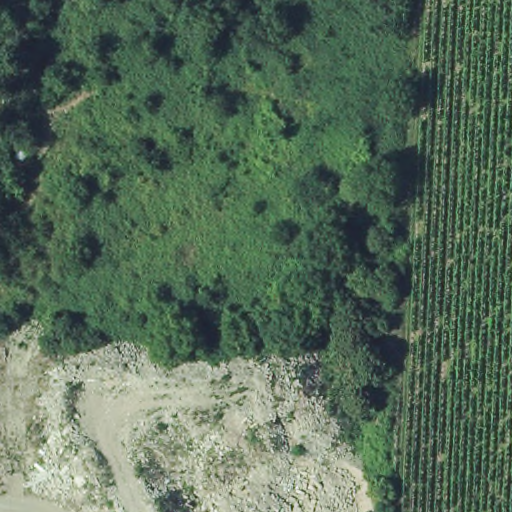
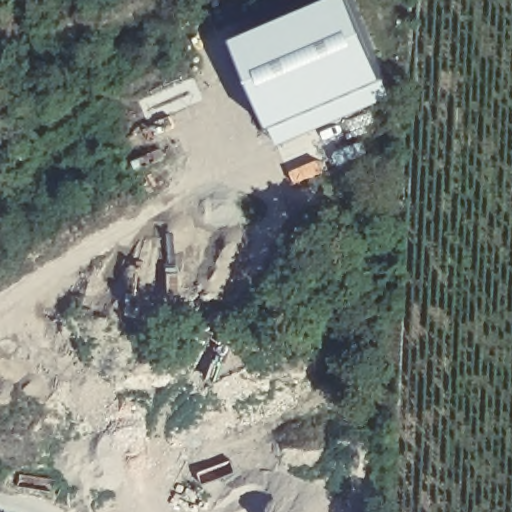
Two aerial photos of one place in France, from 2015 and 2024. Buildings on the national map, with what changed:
new [(349,0),(365,0),(406,95),(285,147),(247,45),(349,0)]

